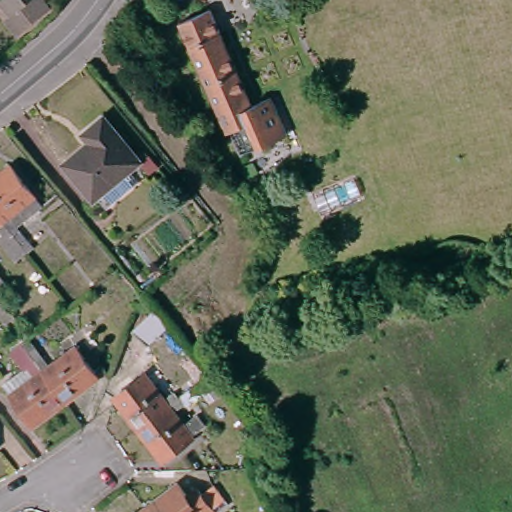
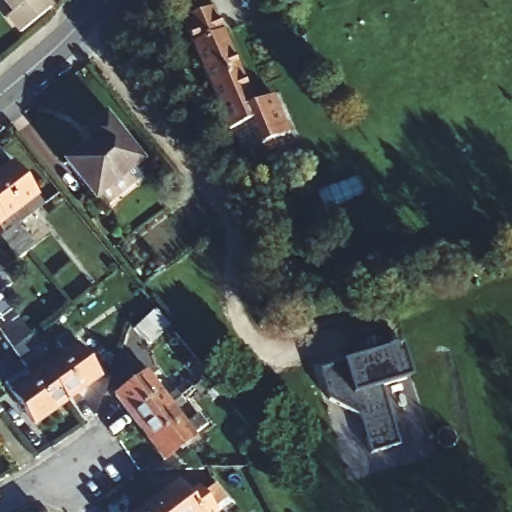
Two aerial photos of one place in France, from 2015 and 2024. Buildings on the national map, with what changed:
unchanged [(9,8),(2,0),(47,0),(49,3),(18,29),(4,11),(9,8)]
unchanged [(228,0),(252,0),(230,6),(228,0)]
unchanged [(151,34),(138,16),(155,4),(168,21),(151,34)]
unchanged [(213,14),(255,111),(274,102),(289,139),(243,160),(232,136),(229,137),(181,27),(213,14)]
unchanged [(133,149),(124,156),(136,169),(103,197),(93,184),(88,188),(58,152),(82,131),(75,123),(94,105),(133,149)]
unchanged [(32,191),(9,209),(17,218),(8,225),(0,214),(0,169),(8,161),(32,191)]
unchanged [(0,236),(0,231),(3,229),(0,226),(0,214),(8,225),(26,246),(15,255),(0,236)]
unchanged [(0,292),(0,276),(8,286),(0,292)]
unchanged [(0,316),(0,298),(9,309),(0,316)]
unchanged [(171,317),(150,336),(136,321),(158,302),(171,317)]
unchanged [(38,362),(45,357),(53,366),(78,345),(102,374),(70,400),(38,362)]
new [(403,347),(411,378),(379,385),(399,447),(371,453),(361,413),(327,400),(318,369),(403,347)]
unchanged [(39,424),(15,396),(40,376),(32,367),(38,362),(70,400),(39,424)]
unchanged [(211,376),(171,409),(179,419),(191,408),(201,419),(188,430),(189,431),(161,456),(135,426),(188,382),(204,369),(211,376)]
unchanged [(108,394),(139,370),(159,394),(182,376),(188,382),(135,426),(108,394)]
unchanged [(0,384),(0,374),(5,380),(0,384)]
unchanged [(0,417),(0,412),(2,415),(0,417)]
unchanged [(144,502),(176,475),(187,486),(208,468),(228,489),(206,508),(203,506),(195,512),(153,512),(144,502)]
unchanged [(144,502),(153,512),(132,512),(144,502)]

